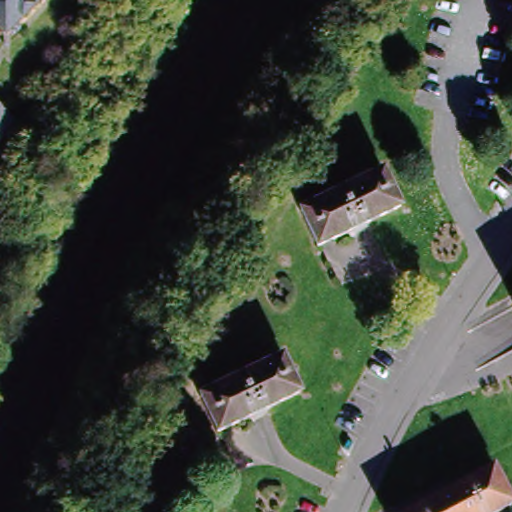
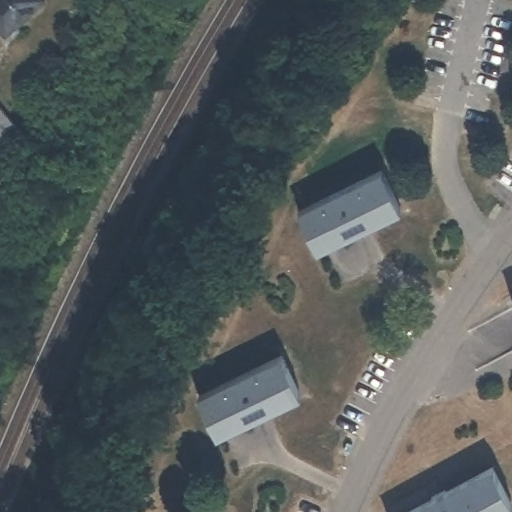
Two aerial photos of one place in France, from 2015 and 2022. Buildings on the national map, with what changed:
unchanged [(42,0),(43,1),(3,39),(0,36),(0,0),(42,0)]
unchanged [(2,143),(0,141),(0,99),(2,96),(25,119),(2,143)]
unchanged [(385,168),(402,204),(319,243),(302,206),(385,168)]
unchanged [(283,358),(300,392),(218,430),(202,396),(283,358)]
unchanged [(512,500),(512,507),(502,512),(417,512),(497,470),(512,500)]

